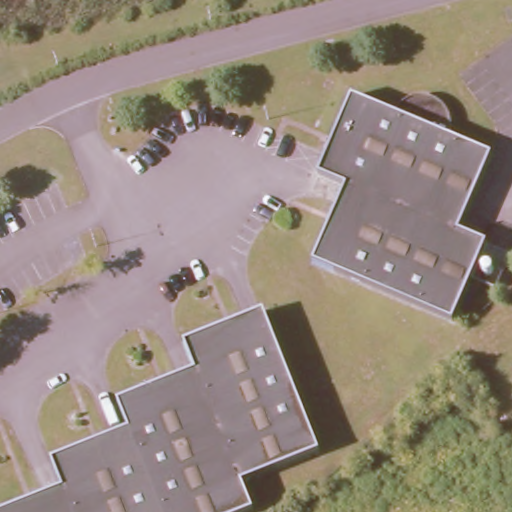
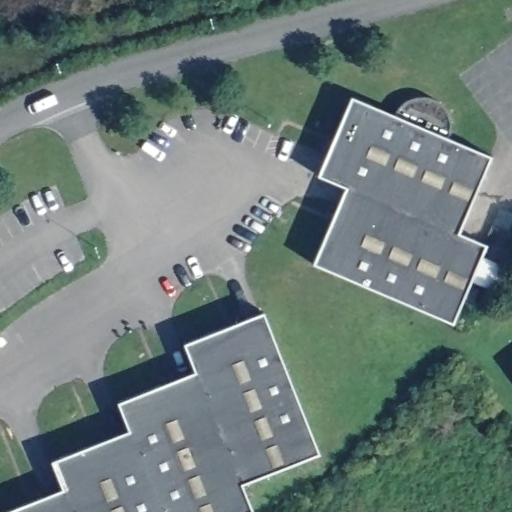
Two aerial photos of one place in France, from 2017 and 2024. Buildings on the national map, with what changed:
unchanged [(400,98),(411,91),(425,91),(436,96),(445,106),(449,118),(447,131),(492,149),(459,225),(485,238),(453,317),(312,257),(345,181),(315,169),(350,89),(392,107),(400,98)]
unchanged [(241,478),(252,505),(235,512),(0,512),(0,507),(62,481),(51,455),(128,422),(117,395),(193,364),(182,336),(261,305),(319,446),(241,478)]

